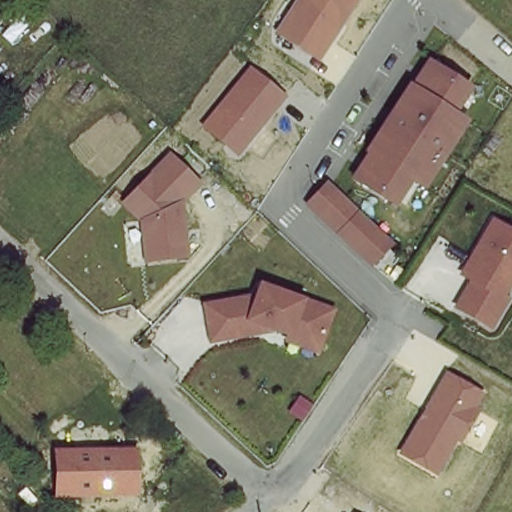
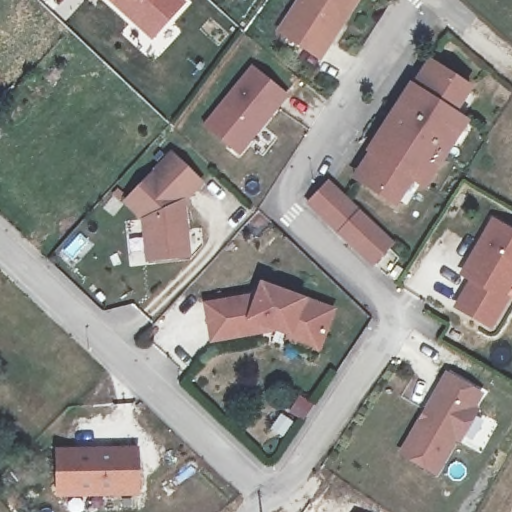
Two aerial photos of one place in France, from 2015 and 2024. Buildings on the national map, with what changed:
new [(151,39),(107,0),(176,0),(181,5),(151,39)]
unchanged [(358,0),(319,62),(275,31),(295,0),(358,0)]
unchanged [(473,88),(458,114),(470,122),(426,192),(412,182),(396,209),(350,179),(428,57),(473,88)]
unchanged [(250,64),(289,96),(239,156),(201,124),(250,64)]
unchanged [(205,183),(186,202),(192,260),(144,266),(141,222),(123,202),(171,148),(205,183)]
unchanged [(331,177),(398,243),(371,267),(306,204),(331,177)]
unchanged [(506,297),(511,300),(494,332),(456,309),(467,282),(457,274),(488,220),(512,234),(512,286),(506,297)]
unchanged [(322,354),(266,330),(261,338),(209,347),(201,305),(253,296),(258,277),(338,312),(322,354)]
unchanged [(442,370),(486,393),(461,443),(457,441),(439,477),(398,452),(442,370)]
unchanged [(137,445),(140,495),(58,496),(55,447),(137,445)]

